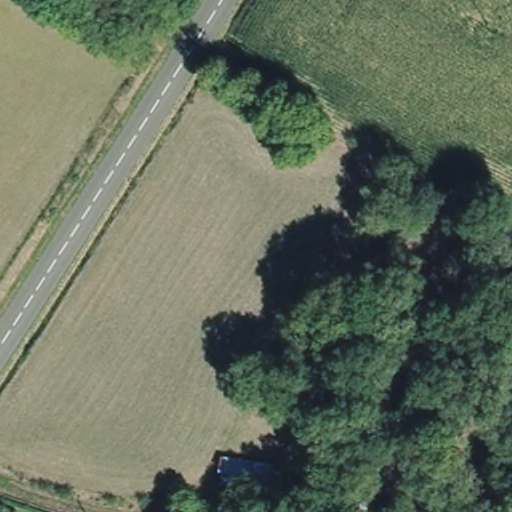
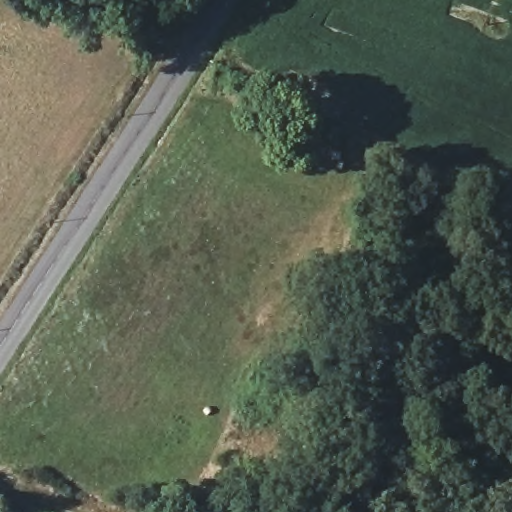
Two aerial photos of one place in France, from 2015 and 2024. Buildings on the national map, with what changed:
unchanged [(220,454),(273,461),(270,493),(216,487),(220,454)]
unchanged [(317,464),(370,469),(366,501),(313,493),(317,464)]

